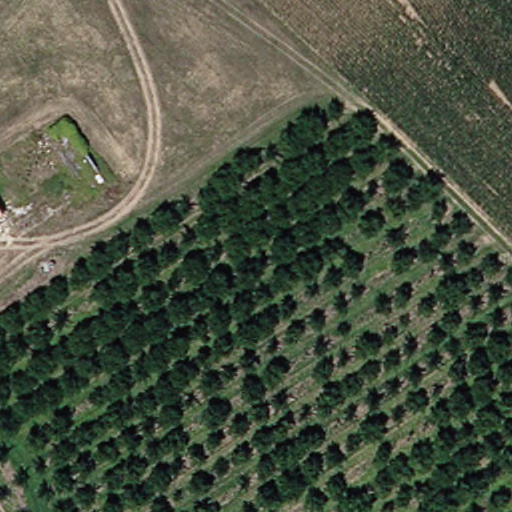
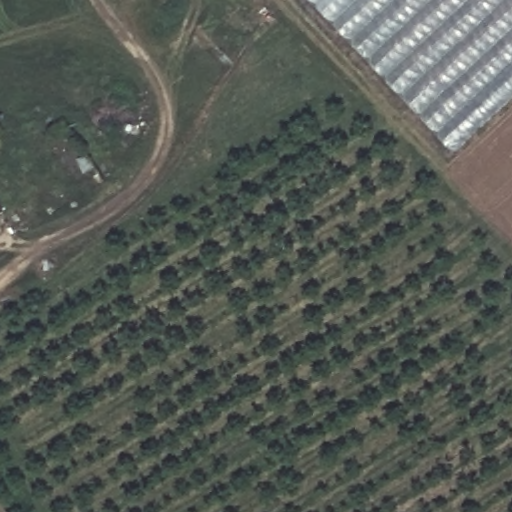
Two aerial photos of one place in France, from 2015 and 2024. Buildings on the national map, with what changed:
new [(456,152),(314,0),(512,0),(512,100),(456,152)]
demolished [(80,197),(18,238),(2,212),(0,208),(0,164),(40,138),(80,197)]
unchanged [(0,214),(0,208),(2,212),(0,214)]

